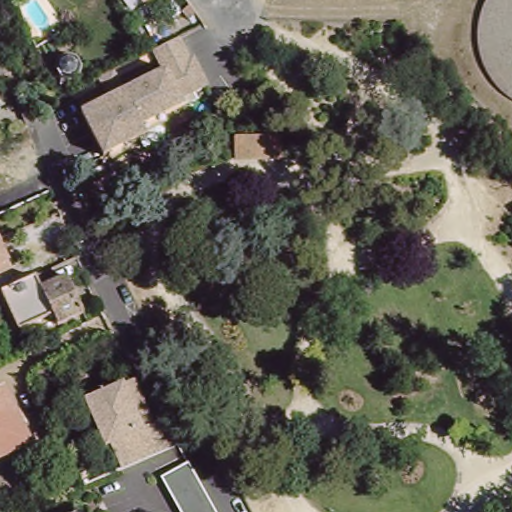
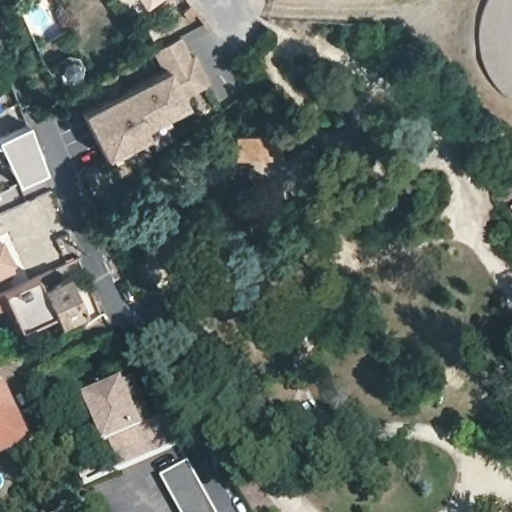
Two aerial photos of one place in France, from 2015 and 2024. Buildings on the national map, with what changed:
unchanged [(141,4),(138,0),(147,0),(141,4)]
unchanged [(179,13),(187,7),(194,16),(185,22),(179,13)]
unchanged [(173,21),(180,33),(151,50),(144,39),(173,21)]
unchanged [(105,89),(100,79),(115,71),(120,81),(125,91),(164,71),(157,57),(184,44),(190,57),(194,55),(209,85),(182,98),(186,105),(143,127),(147,136),(106,157),(83,112),(110,99),(105,89)]
unchanged [(72,55),(77,56),(86,63),(89,72),(87,81),(83,89),(75,90),(63,89),(54,80),(53,71),(55,64),(63,57),(72,55)]
new [(28,125),(45,172),(17,186),(5,161),(0,163),(0,138),(28,125)]
unchanged [(279,136),(277,165),(231,160),(230,136),(279,136)]
unchanged [(10,264),(0,269),(0,242),(10,264)]
unchanged [(71,273),(88,308),(31,335),(9,288),(57,265),(63,277),(71,273)]
unchanged [(142,396),(154,391),(168,415),(112,441),(100,416),(97,417),(96,418),(75,375),(76,375),(121,353),(142,396)]
unchanged [(4,385),(33,441),(0,457),(0,386),(4,385)]
unchanged [(168,415),(179,445),(125,469),(112,441),(168,415)]
unchanged [(178,512),(160,477),(187,462),(213,512),(178,512)]

